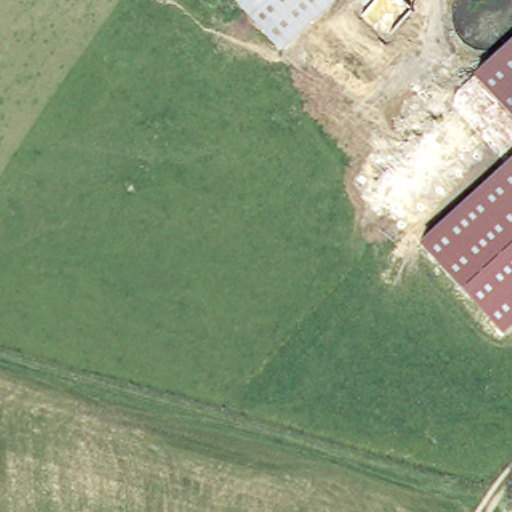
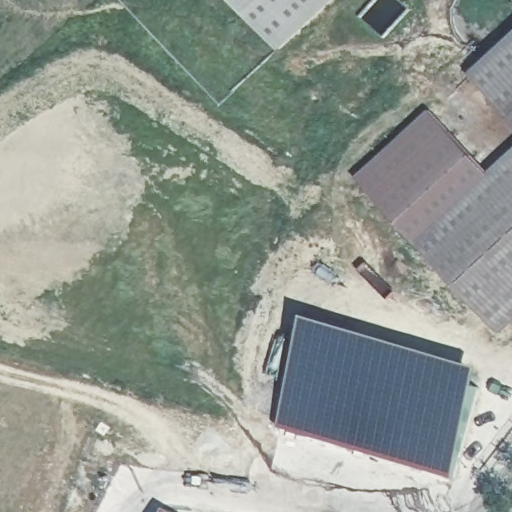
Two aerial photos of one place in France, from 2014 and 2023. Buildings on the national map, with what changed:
unchanged [(238,0),(332,0),(281,47),(238,0)]
unchanged [(471,71),(512,33),(512,125),(471,71)]
new [(417,242),(360,179),(435,112),(491,174),(417,242)]
unchanged [(503,335),(417,242),(512,155),(512,327),(503,335)]
new [(316,315),(488,366),(482,385),(309,333),(316,315)]
new [(309,333),(482,385),(456,476),(282,423),(309,333)]
new [(166,511),(169,512),(165,512),(166,511)]

